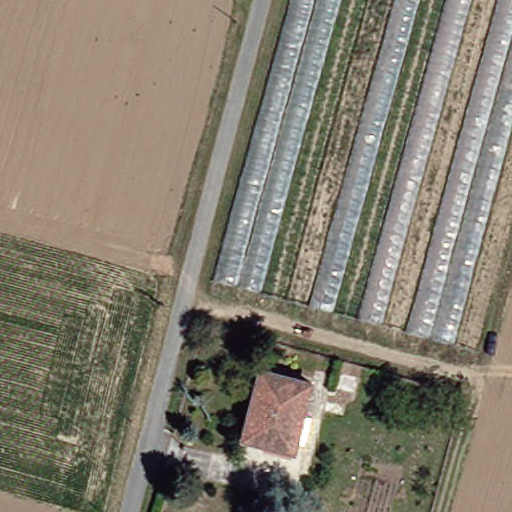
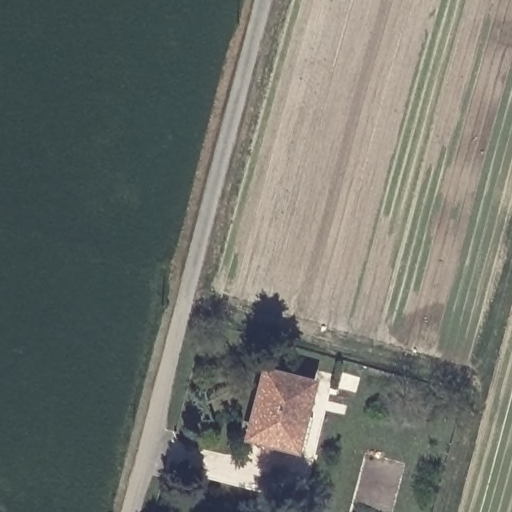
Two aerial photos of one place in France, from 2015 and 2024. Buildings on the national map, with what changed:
demolished [(296,0),(512,0),(512,234),(479,350),(217,284),(296,0)]
unchanged [(317,383),(300,451),(250,437),(265,370),(317,383)]

